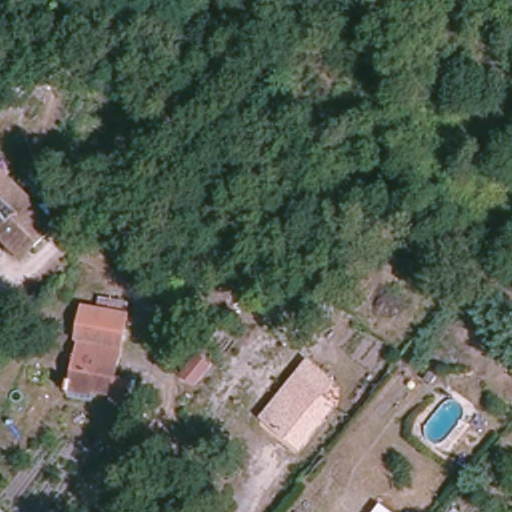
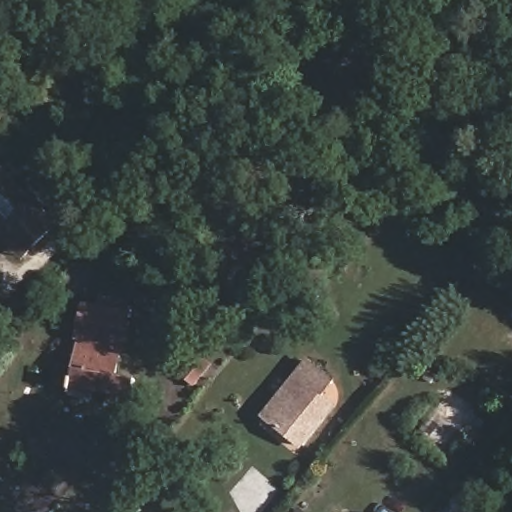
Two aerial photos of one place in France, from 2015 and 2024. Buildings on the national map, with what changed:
unchanged [(448,0),(451,0),(450,1),(448,0)]
unchanged [(13,246),(0,233),(0,168),(60,222),(36,247),(26,258),(13,246)]
unchanged [(69,388),(79,336),(90,336),(98,298),(125,301),(112,396),(69,388)]
unchanged [(303,367),(331,390),(320,404),(331,414),(300,451),(259,417),(303,367)]

